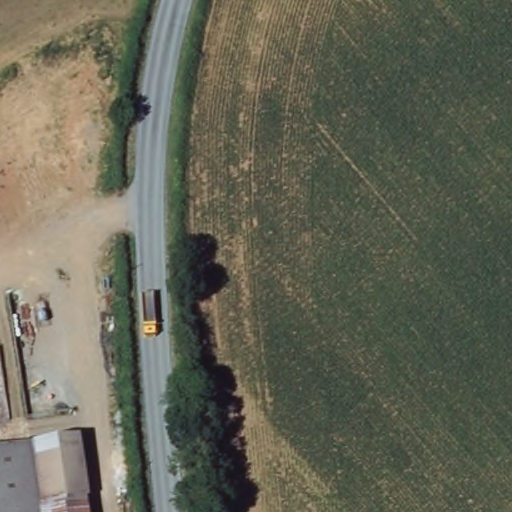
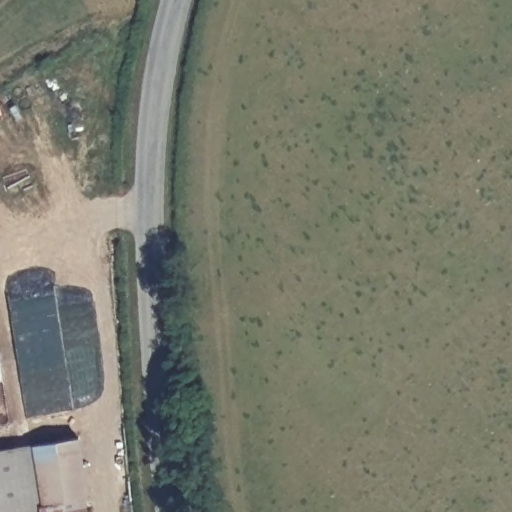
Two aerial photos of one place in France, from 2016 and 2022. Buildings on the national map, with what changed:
unchanged [(0,512),(0,445),(47,437),(78,432),(86,490),(87,492),(85,500),(87,512),(0,512)]

